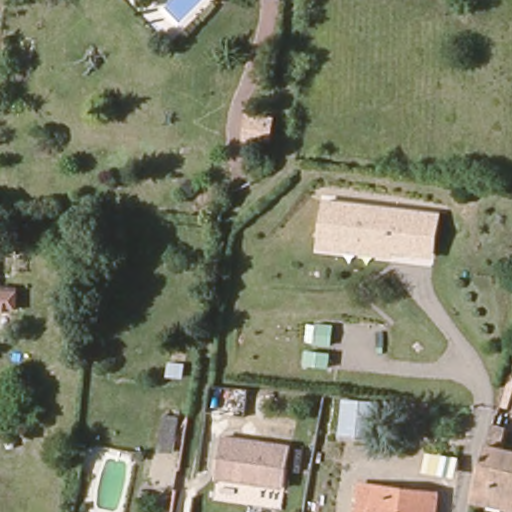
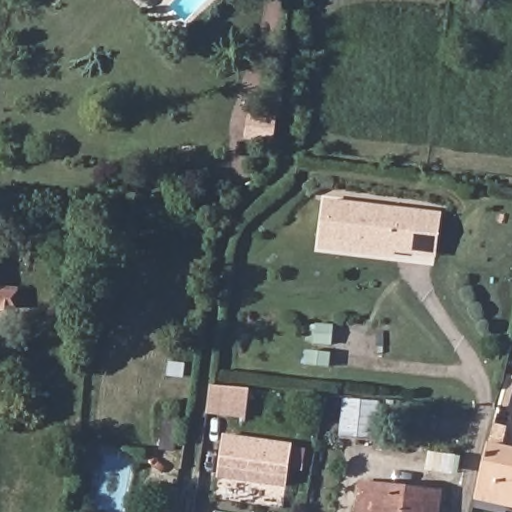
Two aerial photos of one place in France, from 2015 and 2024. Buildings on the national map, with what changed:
unchanged [(250,113),(274,114),(274,141),(247,140),(250,113)]
unchanged [(329,242),(308,239),(313,197),(335,200),(427,211),(424,246),(401,243),(400,251),(329,242)]
unchanged [(401,243),(424,246),(427,211),(448,214),(444,241),(442,256),(437,255),(400,251),(401,243)]
unchanged [(15,291),(14,308),(0,308),(0,290),(15,291)]
unchanged [(318,322),(331,324),(334,324),(331,343),(329,343),(316,341),(318,322)]
demolished [(298,327),(312,329),(314,329),(312,348),(309,347),(296,346),(298,327)]
new [(210,385),(251,388),(247,417),(207,414),(210,385)]
unchanged [(348,396),(377,399),(372,441),(343,436),(348,396)]
unchanged [(170,419),(183,421),(178,458),(162,455),(170,419)]
unchanged [(293,445),(290,486),(283,485),(217,476),(223,434),(289,445),(293,445)]
unchanged [(485,441),(512,448),(512,506),(471,499),(485,441)]
unchanged [(75,477),(76,453),(89,454),(86,477),(75,477)]
unchanged [(440,492),(438,512),(361,512),(363,483),(440,492)]

